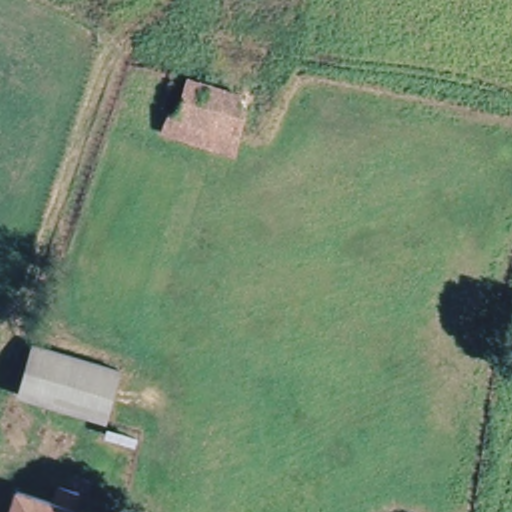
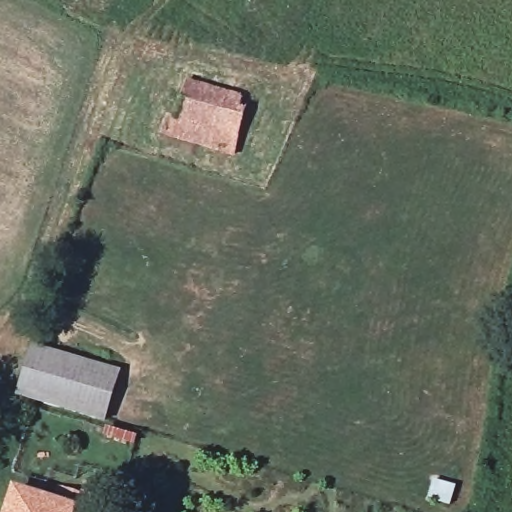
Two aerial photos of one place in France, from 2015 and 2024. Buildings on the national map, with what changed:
unchanged [(250,98),(240,135),(179,120),(189,82),(250,98)]
unchanged [(179,120),(240,135),(235,154),(159,136),(164,116),(179,120)]
unchanged [(120,376),(105,423),(19,400),(34,350),(120,376)]
unchanged [(11,512),(16,497),(54,506),(59,491),(70,494),(74,485),(85,488),(77,512),(11,512)]

